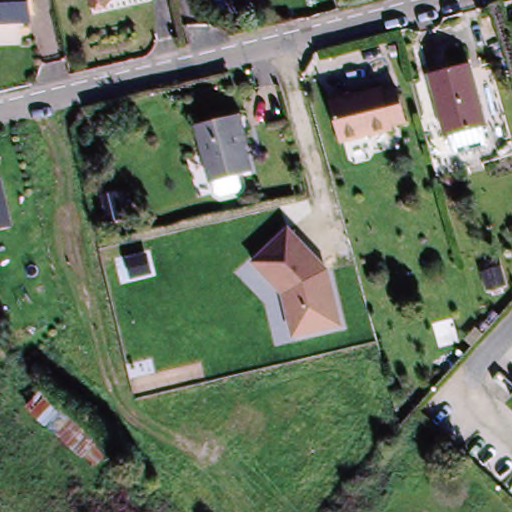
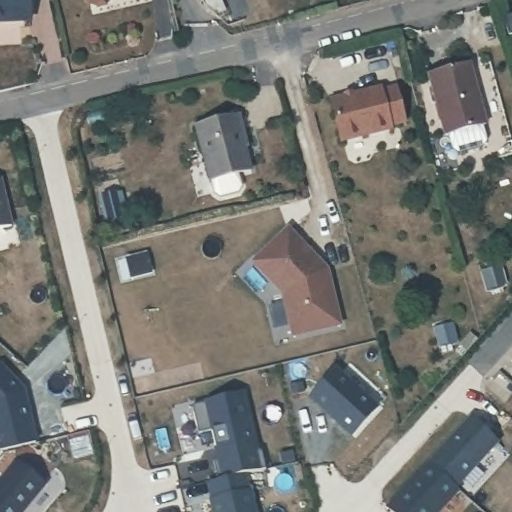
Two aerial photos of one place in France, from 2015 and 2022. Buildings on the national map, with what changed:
unchanged [(0,0),(17,0),(18,24),(0,25),(0,0)]
unchanged [(93,13),(90,0),(146,0),(93,13)]
unchanged [(445,136),(428,74),(468,64),(485,124),(445,136)]
unchanged [(402,89),(411,127),(341,143),(332,98),(402,89)]
unchanged [(246,115),(258,171),(211,185),(198,127),(246,115)]
unchanged [(11,228),(0,231),(0,179),(1,178),(11,228)]
unchanged [(288,226),(329,268),(343,325),(290,338),(279,294),(249,263),(288,226)]
demolished [(496,372),(512,354),(512,378),(507,383),(496,372)]
new [(28,386),(35,442),(0,448),(0,362),(1,361),(28,386)]
new [(379,406),(354,439),(306,397),(334,370),(379,406)]
new [(259,448),(264,446),(269,465),(220,476),(215,457),(220,456),(213,426),(200,429),(194,402),(244,389),(259,448)]
new [(476,414),(503,439),(468,476),(462,483),(434,459),(441,452),(476,414)]
new [(434,459),(464,486),(440,512),(401,512),(393,504),(434,459)]
new [(0,512),(0,481),(18,460),(23,460),(48,481),(22,512),(0,512)]
new [(218,512),(214,497),(215,497),(210,478),(247,470),(252,488),(253,488),(258,512),(218,512)]

